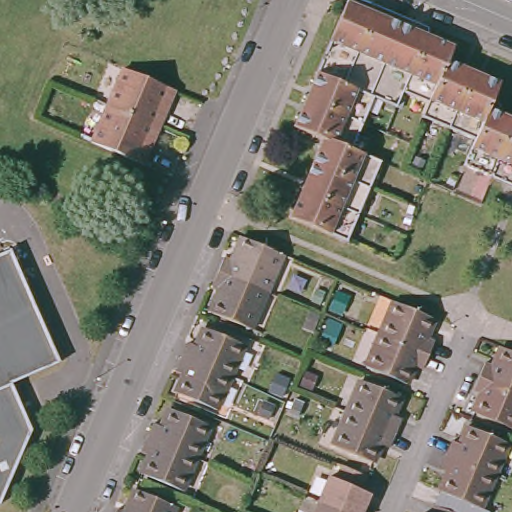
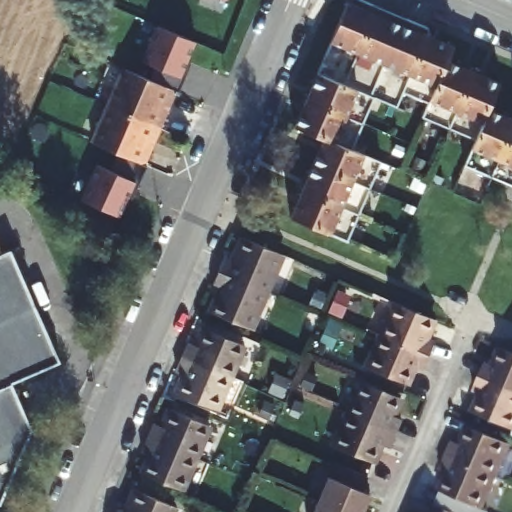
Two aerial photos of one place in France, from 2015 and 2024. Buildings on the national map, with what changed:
new [(222,0),(227,0),(226,2),(222,0)]
unchanged [(448,47),(445,56),(443,59),(442,62),(495,83),(494,87),(486,107),(512,118),(512,144),(497,179),(486,175),(460,164),(472,138),(418,117),(425,101),(399,90),(392,107),(368,97),(347,147),(380,160),(345,239),(325,231),(293,217),(287,215),(318,138),(297,129),(289,126),(340,2),(448,47)]
new [(194,44),(179,80),(140,63),(155,27),(194,44)]
unchanged [(106,107),(121,70),(175,92),(158,129),(106,107)]
unchanged [(143,166),(91,144),(106,107),(158,129),(143,166)]
unchanged [(497,179),(512,144),(512,185),(497,179)]
new [(95,166),(133,184),(117,220),(78,202),(95,166)]
unchanged [(222,262),(232,266),(242,241),(284,259),(268,297),(216,275),(222,262)]
unchanged [(26,297),(51,353),(55,363),(10,383),(7,385),(0,388),(0,253),(5,251),(26,297)]
unchanged [(216,275),(268,297),(252,333),(211,316),(220,294),(210,290),(216,275)]
unchanged [(413,313),(433,321),(426,339),(435,342),(428,357),(378,336),(391,303),(411,312),(413,313)]
unchanged [(181,341),(191,344),(198,327),(240,345),(227,377),(175,355),(181,341)]
unchanged [(428,357),(422,371),(415,368),(408,386),(365,368),(378,336),(428,357)]
unchanged [(483,364),(491,367),(499,350),(512,355),(512,394),(477,378),(483,364)]
unchanged [(227,377),(213,410),(171,392),(179,373),(170,369),(175,355),(227,377)]
unchanged [(512,394),(512,432),(472,414),(480,396),(472,391),(477,378),(512,394)]
unchanged [(345,416),(359,382),(401,400),(394,418),(401,422),(395,437),(345,416)]
unchanged [(27,431),(0,494),(0,388),(7,385),(27,431)]
unchanged [(152,422),(162,426),(170,408),(211,426),(197,457),(146,435),(152,422)]
unchanged [(390,451),(381,447),(374,466),(331,448),(345,416),(395,437),(390,451)]
unchanged [(443,457),(450,443),(458,447),(466,428),(506,445),(492,478),(443,457)]
unchanged [(197,457),(184,490),(142,472),(150,454),(140,450),(146,435),(197,457)]
unchanged [(492,478),(478,512),(438,496),(447,475),(438,471),(443,457),(492,478)]
unchanged [(317,505),(328,479),(335,481),(341,467),(368,479),(362,493),(370,497),(364,512),(335,512),(317,505)]
unchanged [(111,507),(120,512),(130,489),(172,507),(170,512),(109,512),(111,507)]
unchanged [(335,512),(314,512),(317,505),(335,512)]
unchanged [(433,507),(446,512),(430,512),(433,507)]

